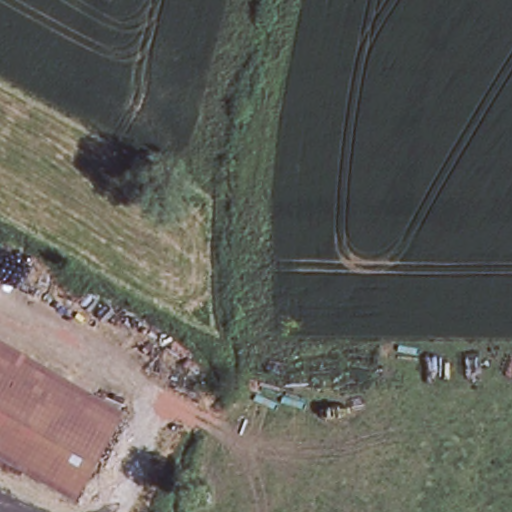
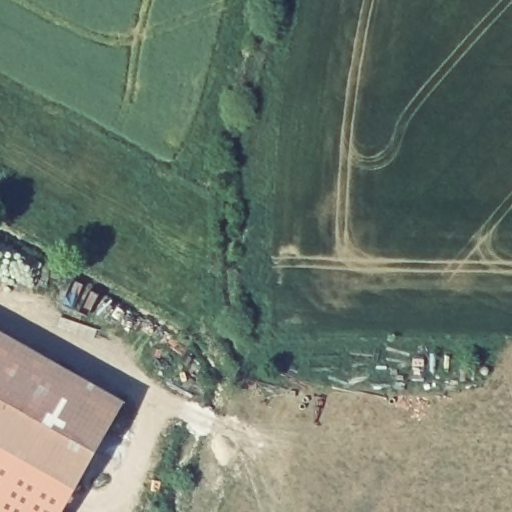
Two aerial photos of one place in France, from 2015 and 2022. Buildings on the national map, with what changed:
unchanged [(120,405),(81,475),(0,429),(0,338),(120,405)]
new [(62,512),(0,512),(0,429),(81,475),(62,512)]

